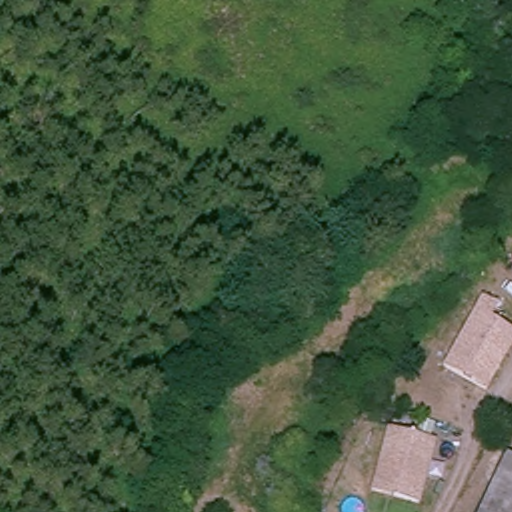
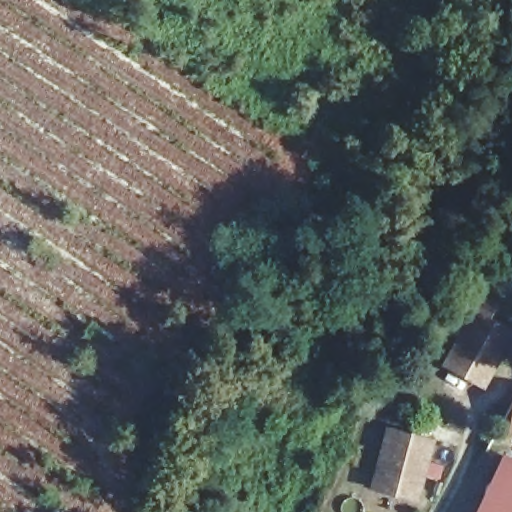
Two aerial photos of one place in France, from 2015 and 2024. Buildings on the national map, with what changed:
unchanged [(286,312),(310,283),(334,305),(306,334),(286,312)]
unchanged [(450,347),(472,308),(511,332),(480,383),(460,371),(441,360),(450,347)]
unchanged [(370,469),(383,426),(426,439),(408,497),(385,490),(365,484),(370,469)]
unchanged [(512,457),(512,512),(483,512),(491,495),(510,456),(512,457)]

